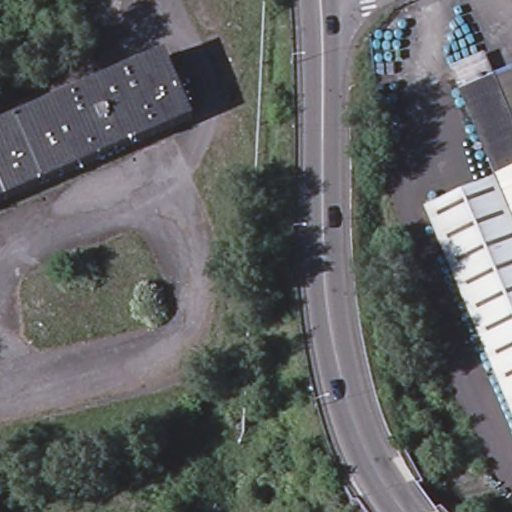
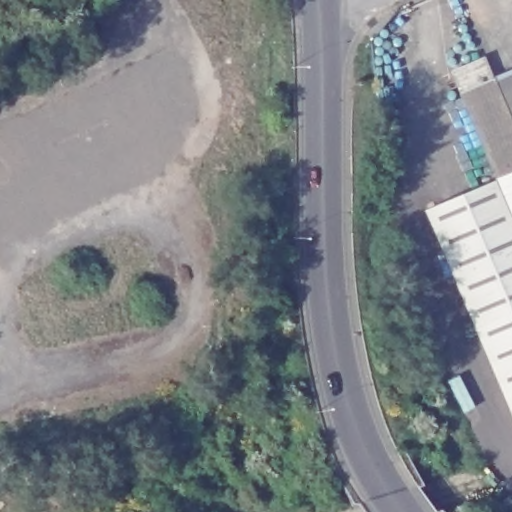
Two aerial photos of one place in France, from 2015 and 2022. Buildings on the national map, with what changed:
unchanged [(489,82),(512,138),(512,175),(494,183),(492,179),(447,70),(479,57),(489,82)]
demolished [(187,121),(0,205),(0,131),(161,59),(187,121)]
unchanged [(489,82),(512,73),(512,138),(489,82)]
unchanged [(429,211),(494,183),(512,175),(512,410),(427,212),(429,211)]
unchanged [(9,451),(0,452),(0,430),(6,429),(9,451)]

